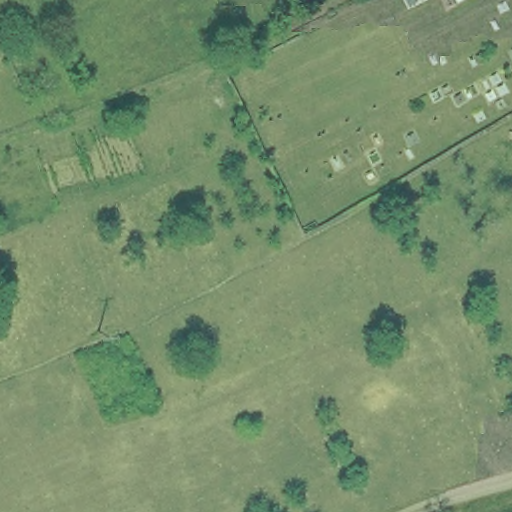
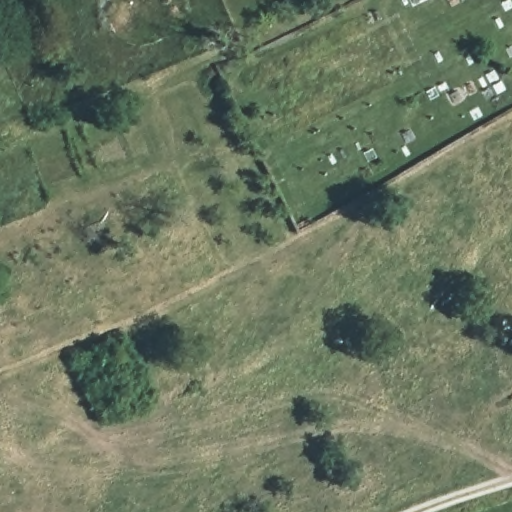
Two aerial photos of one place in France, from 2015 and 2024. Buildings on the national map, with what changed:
[]

